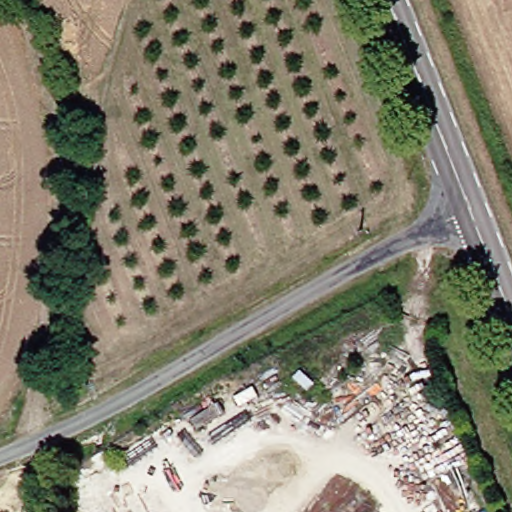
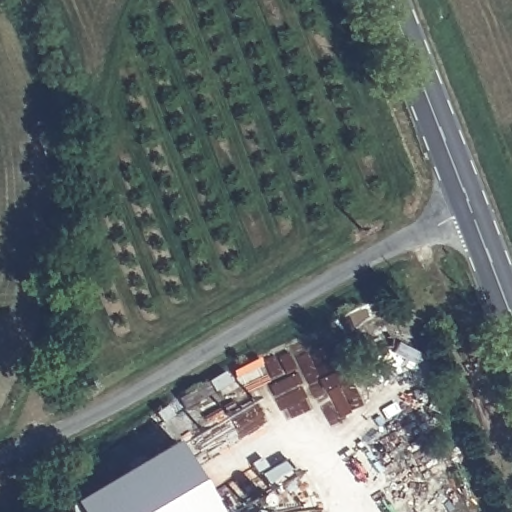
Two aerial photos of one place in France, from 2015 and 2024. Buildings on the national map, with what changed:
new [(214,512),(70,512),(69,503),(175,444),(214,512)]

